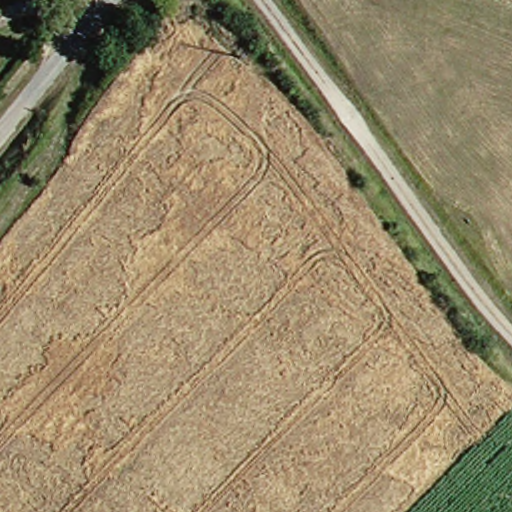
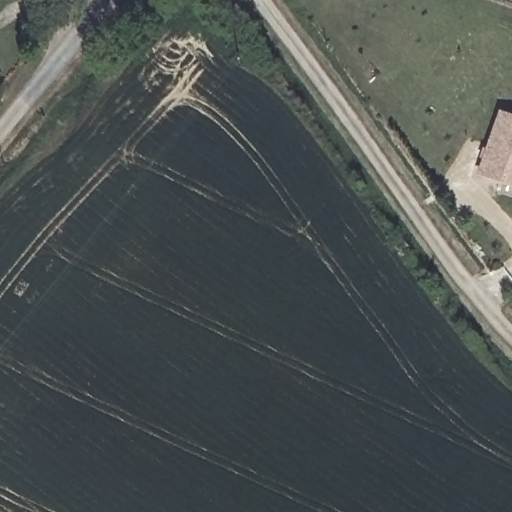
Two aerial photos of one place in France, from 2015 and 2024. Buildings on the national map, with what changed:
new [(512,183),(483,172),(503,114),(512,117),(512,183)]

